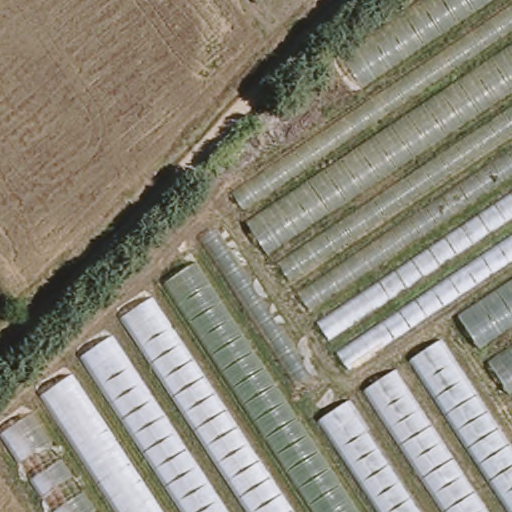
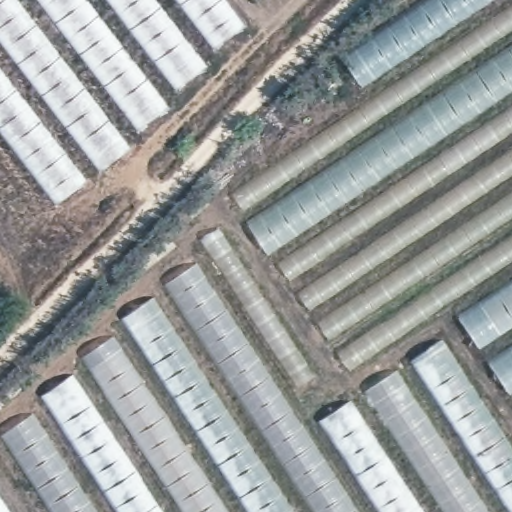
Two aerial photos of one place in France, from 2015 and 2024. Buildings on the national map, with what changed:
new [(245,26),(203,58),(208,65),(163,99),(170,107),(126,139),(132,146),(57,203),(0,129),(0,0),(225,0),(245,26)]
unchanged [(4,448),(0,439),(0,427),(45,403),(33,387),(125,327),(120,314),(198,263),(187,248),(237,219),(225,197),(364,102),(337,54),(421,0),(512,0),(512,274),(452,314),(434,326),(512,446),(512,512),(0,512),(0,451),(4,448)]
unchanged [(512,401),(452,314),(512,274),(512,401)]

